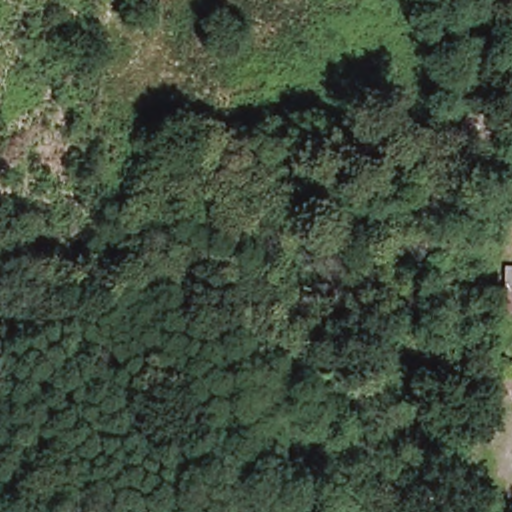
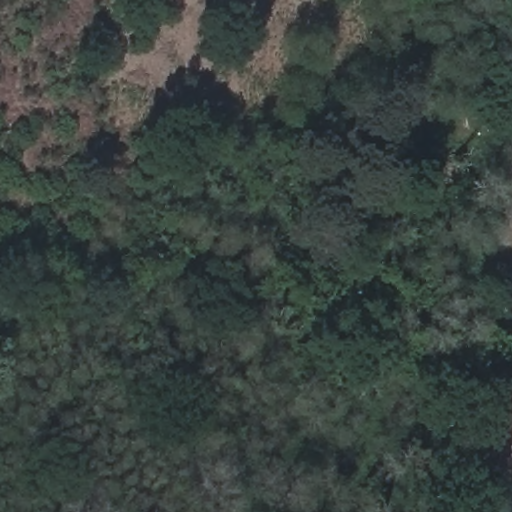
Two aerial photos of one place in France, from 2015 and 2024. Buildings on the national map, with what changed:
unchanged [(512,135),(490,135),(492,121),(512,121),(512,135)]
unchanged [(512,314),(490,313),(492,263),(512,265),(512,314)]

